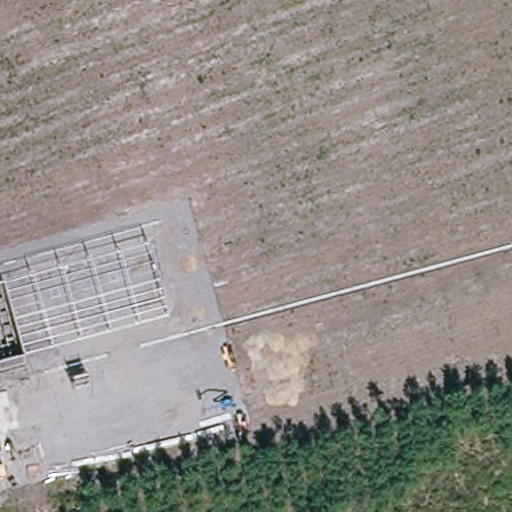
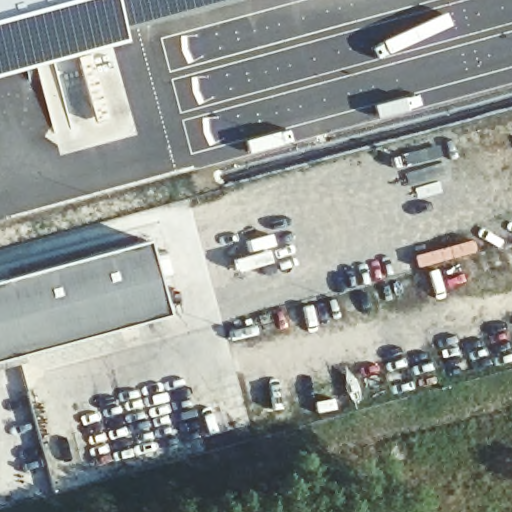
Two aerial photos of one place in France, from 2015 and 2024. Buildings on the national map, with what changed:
new [(124,42),(41,65),(0,75),(0,0),(229,0),(121,29),(124,42)]
new [(0,280),(148,240),(169,314),(0,359),(0,280)]

